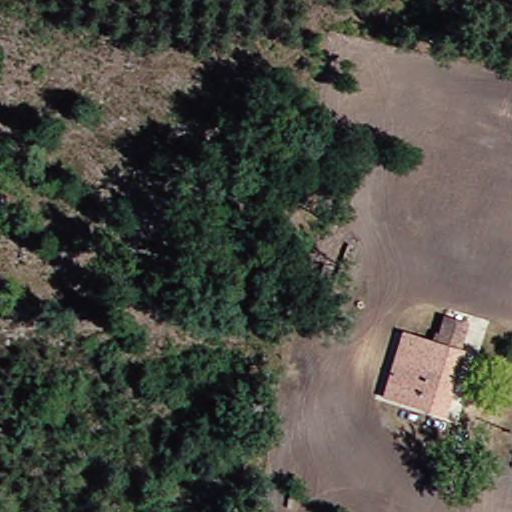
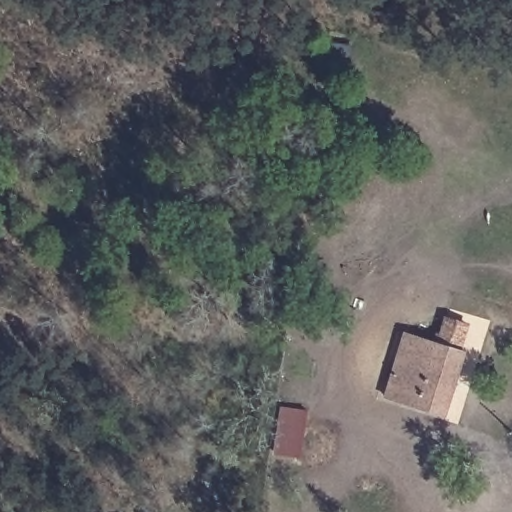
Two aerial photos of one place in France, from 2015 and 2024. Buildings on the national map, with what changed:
unchanged [(438,414),(386,395),(404,333),(431,342),(436,326),(459,334),(454,348),(460,350),(438,414)]
new [(301,460),(276,456),(283,408),(308,411),(301,460)]

